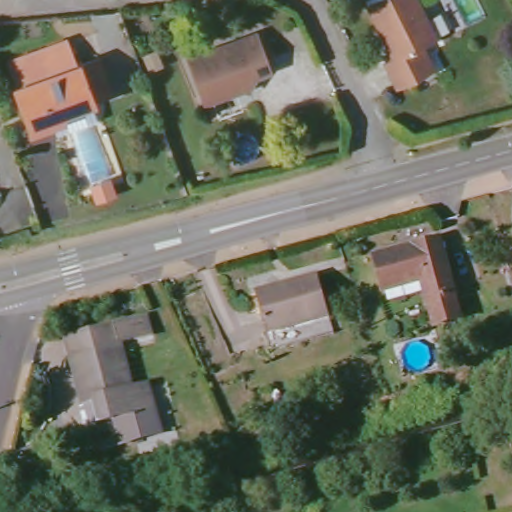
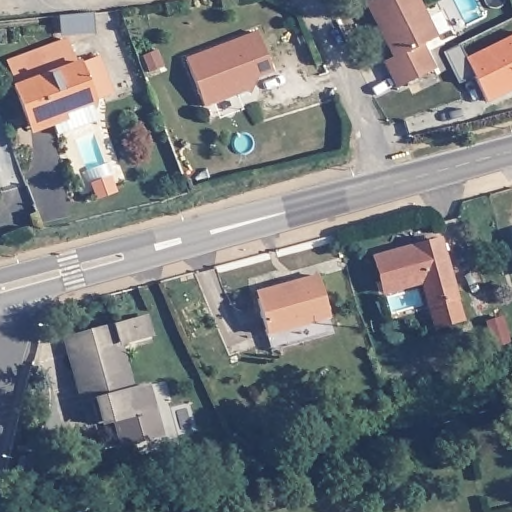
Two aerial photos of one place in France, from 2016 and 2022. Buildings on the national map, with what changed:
unchanged [(417,0),(436,34),(420,42),(432,65),(394,85),(379,59),(389,54),(361,0),(417,0)]
unchanged [(252,29),(267,72),(234,84),(236,92),(198,107),(180,56),(252,29)]
new [(476,76),(462,84),(445,53),(460,45),(468,59),(512,35),(512,89),(490,100),(476,76)]
unchanged [(12,86),(4,63),(61,39),(89,103),(27,131),(9,87),(12,86)]
unchanged [(156,49),(161,62),(147,68),(142,54),(156,49)]
unchanged [(111,177),(117,193),(98,200),(93,184),(111,177)]
unchanged [(435,237),(453,297),(425,306),(416,282),(378,295),(368,257),(435,237)]
unchanged [(311,274),(323,316),(257,334),(247,292),(311,274)]
unchanged [(138,315),(144,337),(117,347),(131,389),(143,386),(151,412),(101,427),(93,406),(80,409),(57,341),(138,315)]

